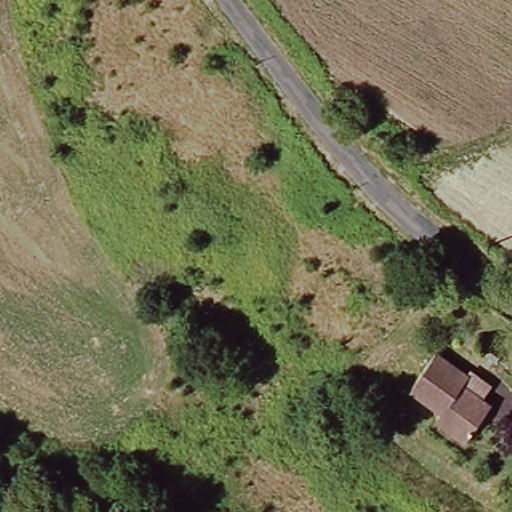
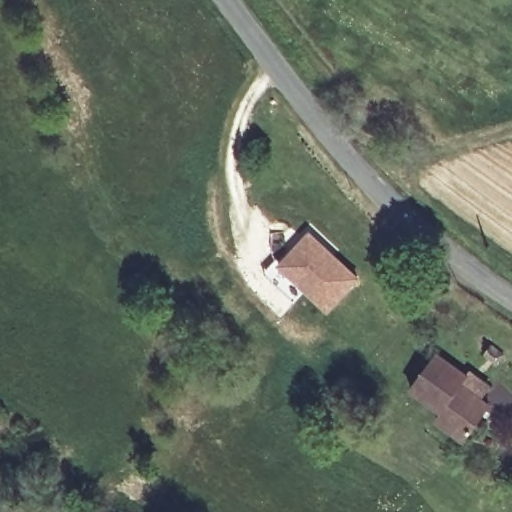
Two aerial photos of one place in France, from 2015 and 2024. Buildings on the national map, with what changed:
new [(310,229),(360,278),(327,312),(275,267),(310,229)]
unchanged [(469,377),(462,386),(495,409),(471,442),(440,421),(446,412),(413,389),(436,355),(469,377)]

